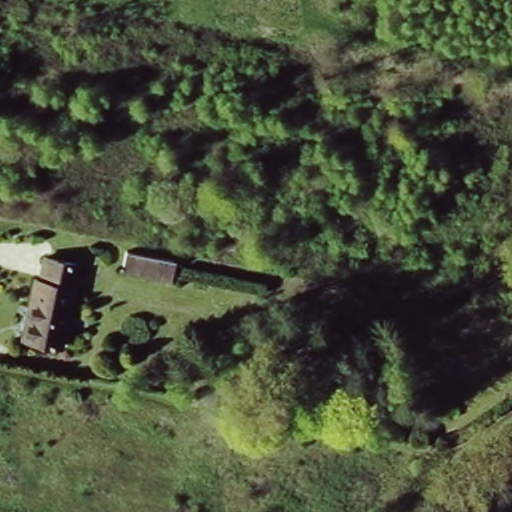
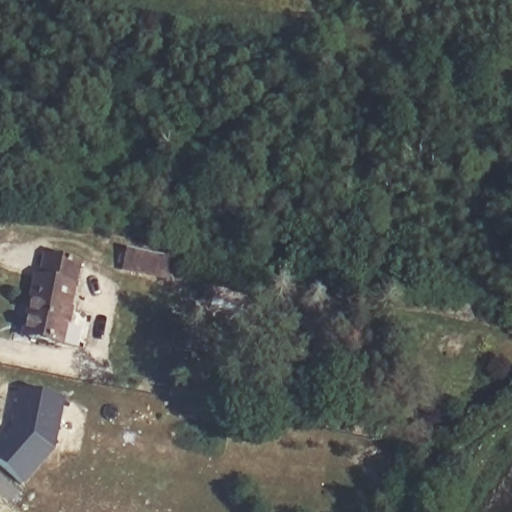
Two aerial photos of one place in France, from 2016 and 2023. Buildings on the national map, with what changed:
new [(172,283),(122,274),(126,250),(177,260),(172,283)]
unchanged [(40,255),(83,265),(65,351),(16,343),(30,278),(40,255)]
new [(23,487),(0,467),(0,443),(12,428),(18,391),(65,401),(55,451),(23,487)]

